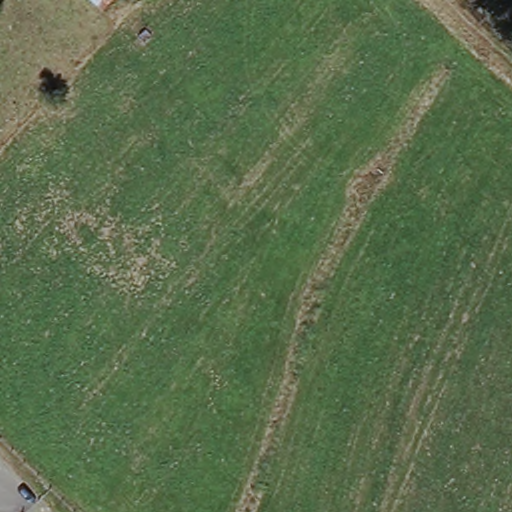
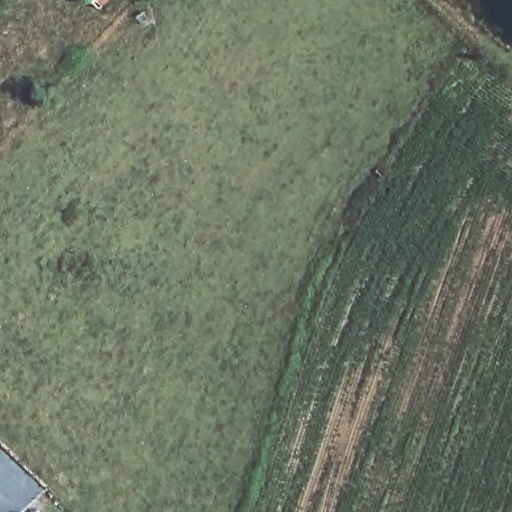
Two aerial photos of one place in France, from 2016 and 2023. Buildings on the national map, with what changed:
unchanged [(111,11),(100,0),(121,0),(111,11)]

